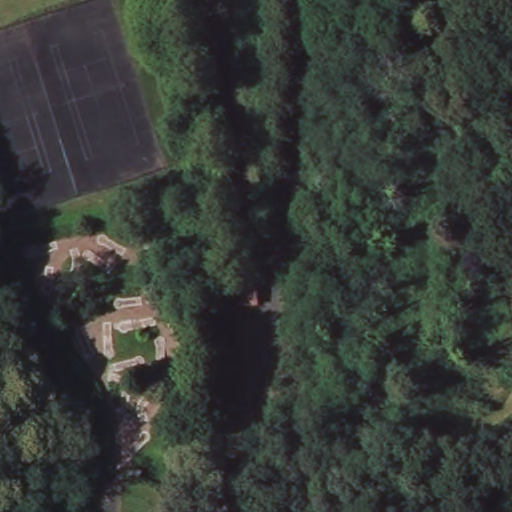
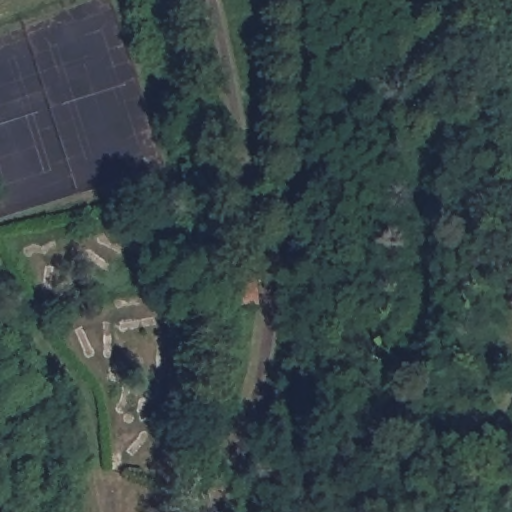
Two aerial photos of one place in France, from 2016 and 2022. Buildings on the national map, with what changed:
unchanged [(256,283),(257,307),(233,308),(232,285),(256,283)]

